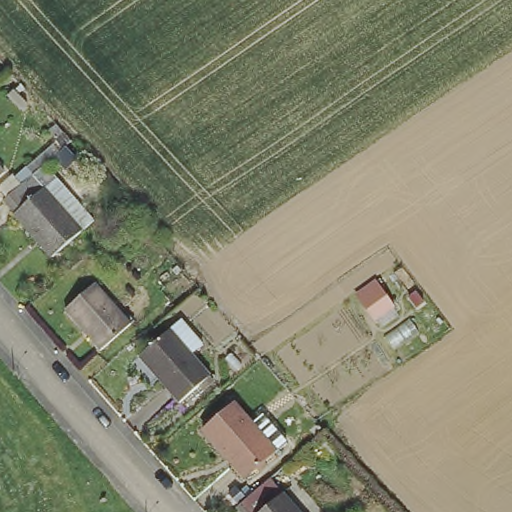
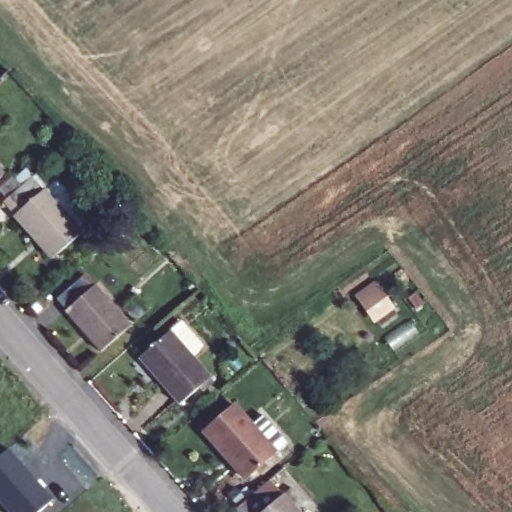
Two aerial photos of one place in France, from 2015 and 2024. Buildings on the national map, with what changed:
unchanged [(28,106),(39,117),(29,126),(18,114),(28,106)]
unchanged [(0,183),(0,173),(5,179),(0,183)]
unchanged [(2,202),(5,200),(0,195),(0,190),(12,178),(20,187),(28,179),(40,193),(42,192),(55,180),(91,224),(79,235),(52,260),(15,216),(2,202)]
unchanged [(396,309),(394,310),(398,316),(382,326),(378,320),(375,322),(355,294),(375,280),(396,309)]
unchanged [(98,284),(134,323),(102,351),(67,312),(98,284)]
unchanged [(172,333),(215,382),(185,408),(141,359),(172,333)]
unchanged [(260,417),(285,444),(274,455),(275,455),(245,482),(204,437),(202,435),(230,408),(242,421),(249,428),(260,417)]
new [(0,456),(7,450),(52,501),(39,512),(5,512),(0,506),(0,456)]
unchanged [(299,512),(242,512),(239,507),(246,501),(270,479),(299,512)]

